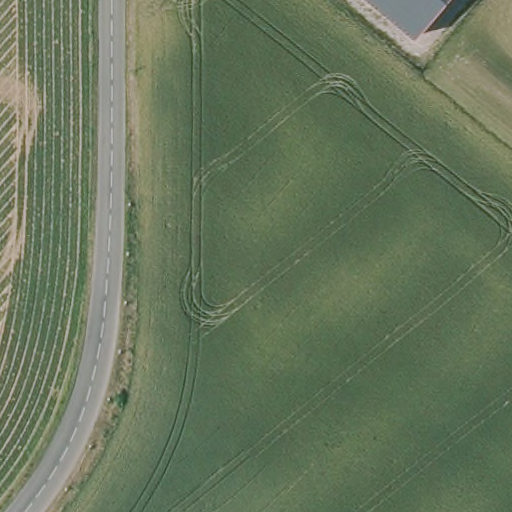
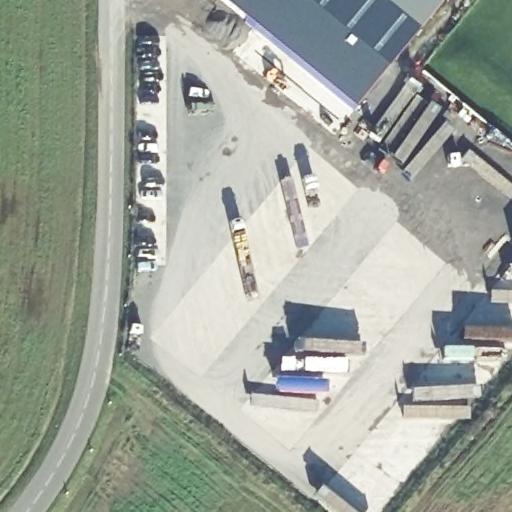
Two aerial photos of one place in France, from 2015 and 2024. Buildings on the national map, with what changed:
new [(354,111),(217,0),(378,0),(418,32),(354,111)]
unchanged [(418,32),(378,0),(445,0),(418,32)]

